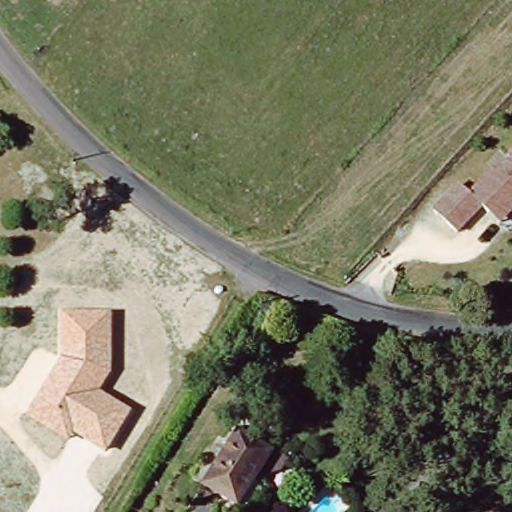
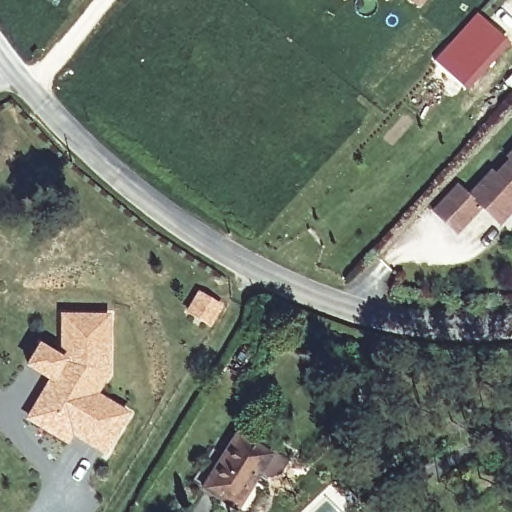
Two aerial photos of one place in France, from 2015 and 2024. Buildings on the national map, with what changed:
new [(411,0),(425,0),(420,7),(411,0)]
new [(468,91),(435,60),(478,13),(511,43),(468,91)]
unchanged [(492,211),(484,205),(460,232),(436,211),(460,183),(472,194),(495,168),(498,171),(511,155),(509,154),(512,150),(512,211),(510,212),(503,221),(492,211)]
unchanged [(61,358),(61,313),(111,313),(112,372),(99,393),(130,412),(105,455),(74,435),(70,443),(26,417),(61,358)]
unchanged [(274,446),(255,476),(265,481),(248,510),(205,483),(240,427),(274,446)]
unchanged [(347,506),(353,512),(342,512),(347,506)]

